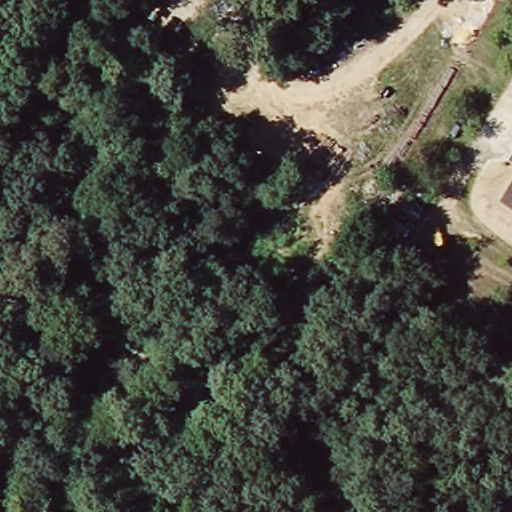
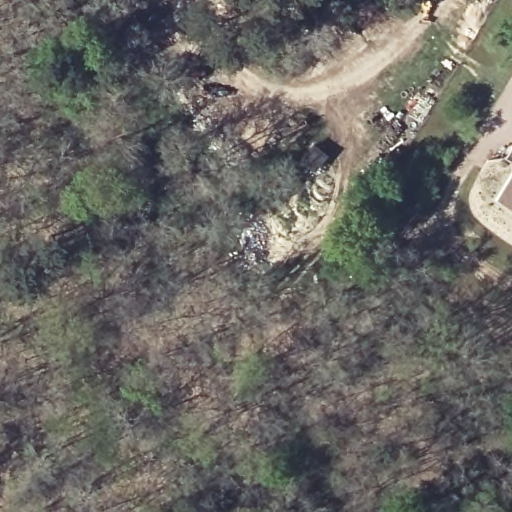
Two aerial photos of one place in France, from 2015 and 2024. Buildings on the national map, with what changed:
unchanged [(503,195),(512,183),(512,201),(503,195)]

